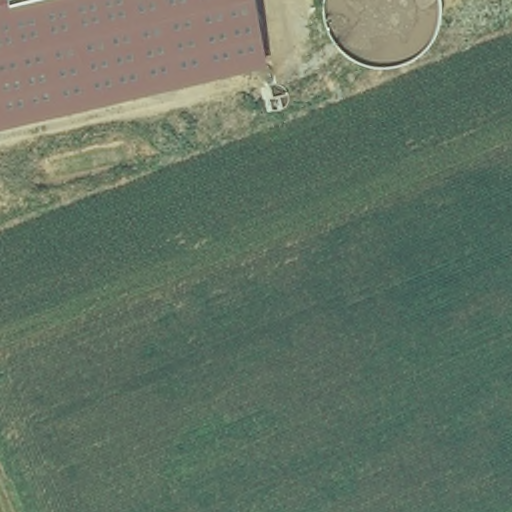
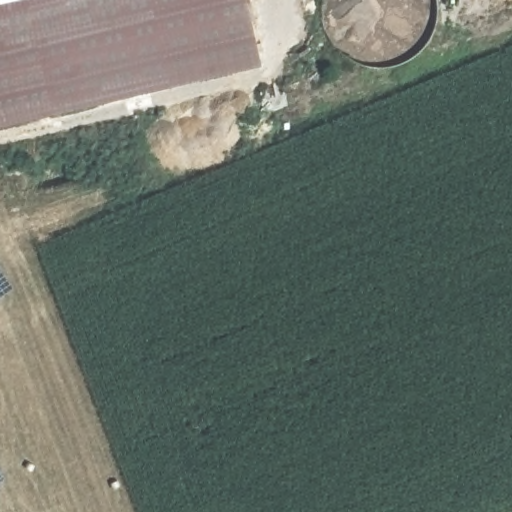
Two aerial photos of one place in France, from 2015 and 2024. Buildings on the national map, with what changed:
unchanged [(0,127),(0,0),(243,0),(259,65),(0,127)]

